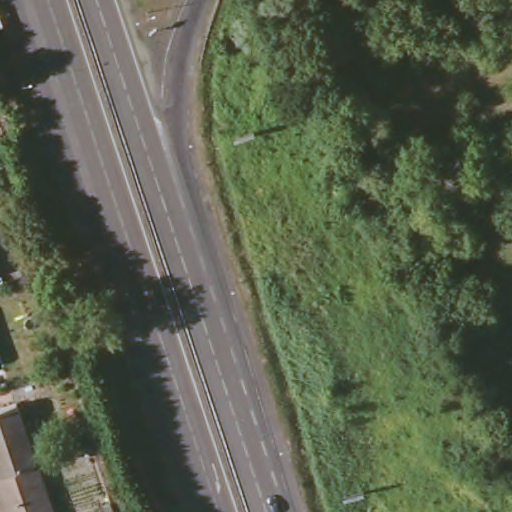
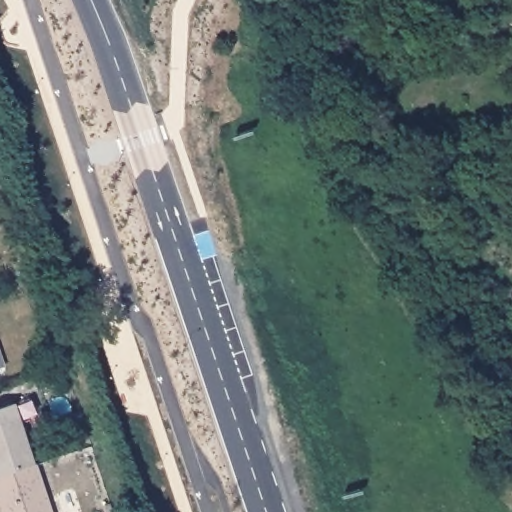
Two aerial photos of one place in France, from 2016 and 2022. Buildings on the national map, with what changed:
unchanged [(35,461),(0,472),(0,406),(15,401),(35,461)]
unchanged [(2,489),(0,490),(0,472),(35,461),(53,512),(10,512),(2,489)]

